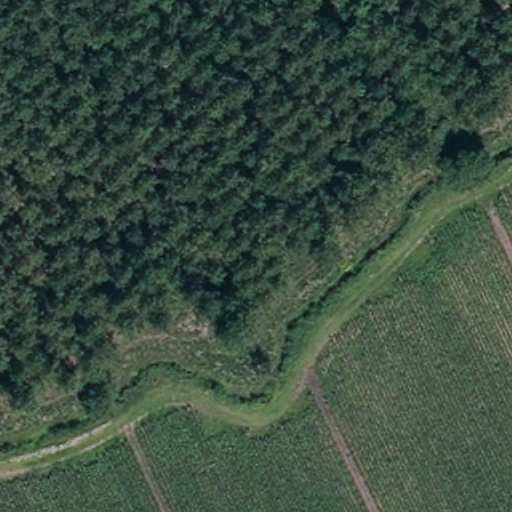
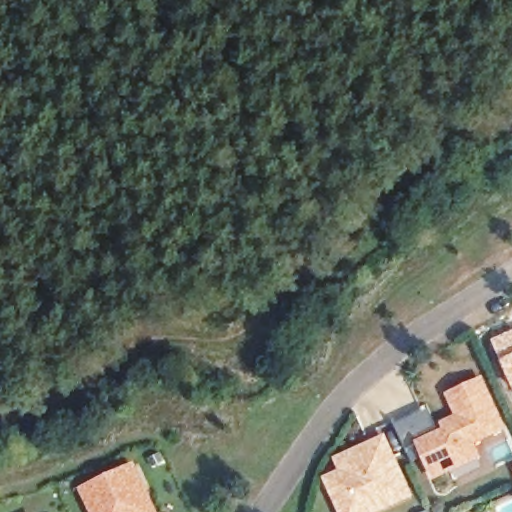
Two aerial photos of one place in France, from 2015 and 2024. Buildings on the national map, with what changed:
new [(512,331),(512,386),(491,339),(512,331)]
new [(477,442),(483,456),(433,479),(418,446),(409,449),(396,423),(430,408),(440,428),(444,426),(441,420),(456,414),(446,393),(485,375),(508,427),(477,442)]
new [(376,512),(340,512),(325,477),(340,469),(334,458),(387,433),(414,495),(376,512)]
new [(130,501),(134,512),(95,512),(82,484),(135,461),(149,493),(130,501)]

